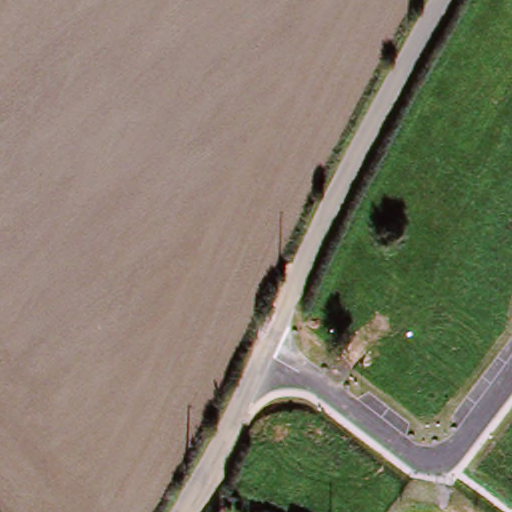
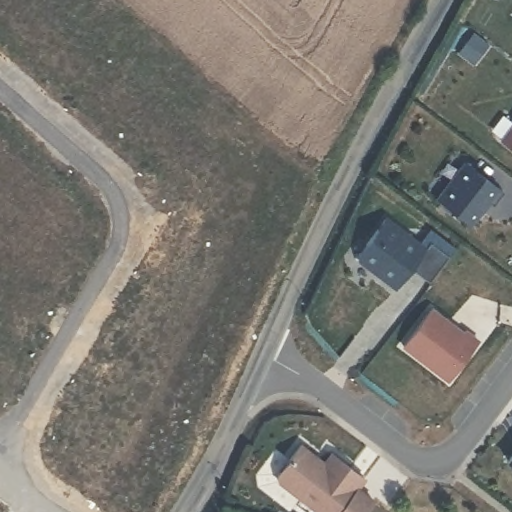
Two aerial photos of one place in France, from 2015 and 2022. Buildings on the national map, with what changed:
new [(512,124),(512,149),(500,140),(512,124)]
new [(505,190),(494,205),(489,201),(470,225),(435,199),(464,161),(505,190)]
new [(422,240),(432,227),(458,249),(429,283),(410,268),(395,289),(358,261),(355,253),(385,215),(422,240)]
new [(464,330),(465,328),(480,340),(448,383),(400,348),(434,306),(464,330)]
new [(320,512),(280,481),(279,474),(302,444),(315,455),(326,462),(334,452),(367,478),(359,488),(375,500),(366,512),(320,512)]
new [(512,455),(512,467),(507,462),(512,455)]

